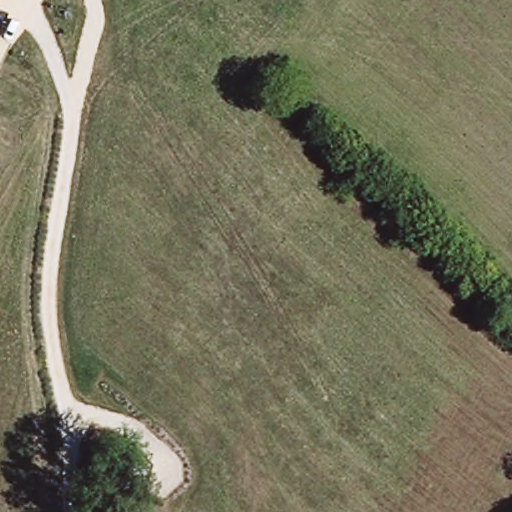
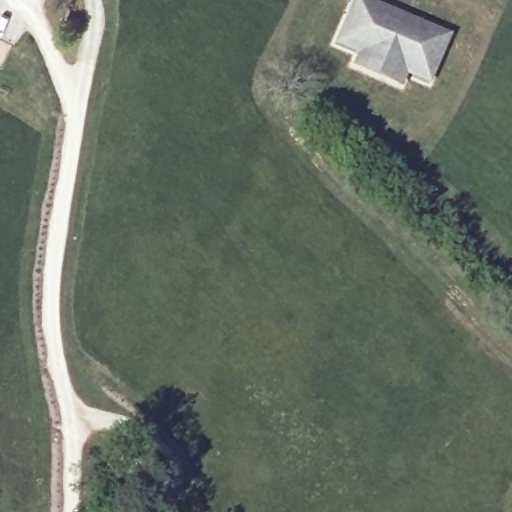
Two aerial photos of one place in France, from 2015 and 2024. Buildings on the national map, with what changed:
new [(358,53),(335,45),(354,0),(370,0),(452,35),(431,84),(407,74),(400,89),(353,66),(358,53)]

